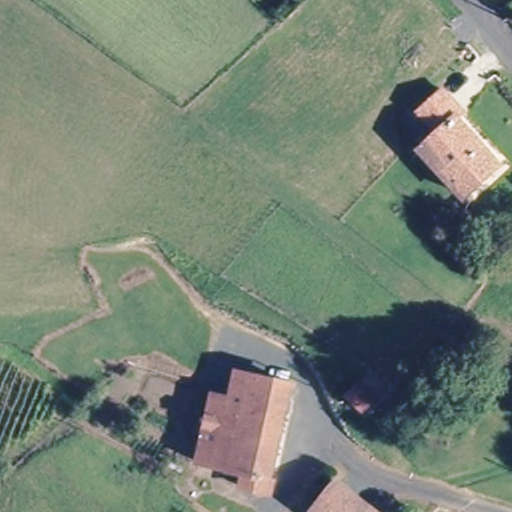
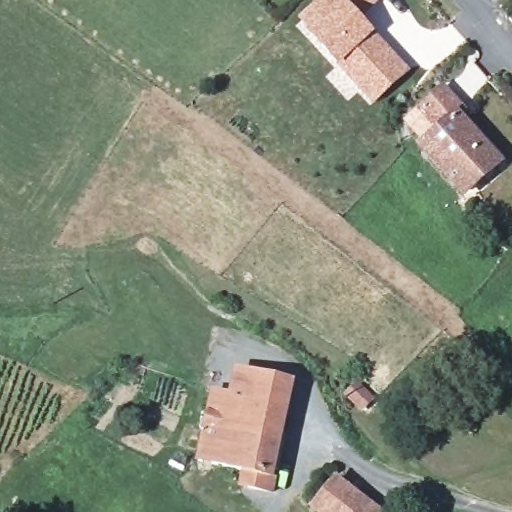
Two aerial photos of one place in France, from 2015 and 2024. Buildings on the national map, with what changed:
new [(373,106),(337,68),(306,35),(308,32),(297,19),(318,0),(380,0),(359,19),(375,35),(410,72),(373,106)]
unchanged [(474,184),(455,202),(413,153),(432,135),(414,112),(437,93),(455,116),(449,122),(481,161),(489,171),(474,184)]
unchanged [(229,406),(232,390),(287,405),(261,512),(237,506),(242,481),(194,467),(210,402),(229,406)]
unchanged [(347,409),(357,402),(371,418),(361,426),(347,409)]
unchanged [(367,512),(310,512),(333,484),(367,512)]

